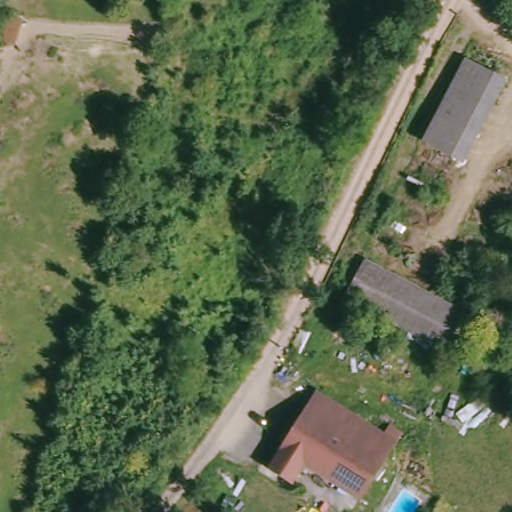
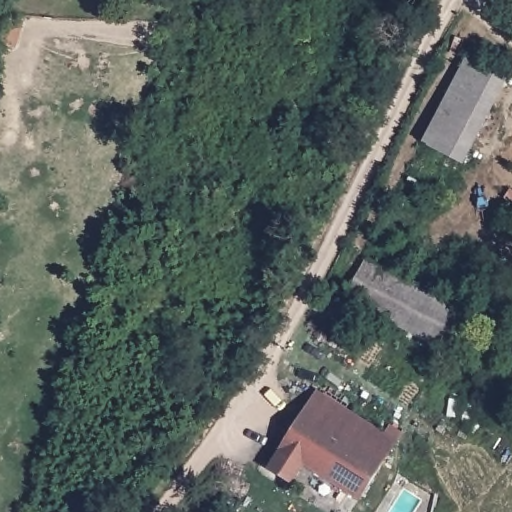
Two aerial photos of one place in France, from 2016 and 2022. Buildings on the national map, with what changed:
unchanged [(493,75),(452,155),(423,139),(465,60),(493,75)]
unchanged [(472,316),(452,354),(344,297),(364,259),(444,301),(472,316)]
unchanged [(390,438),(355,493),(299,457),(287,476),(265,462),(312,388),(390,438)]

